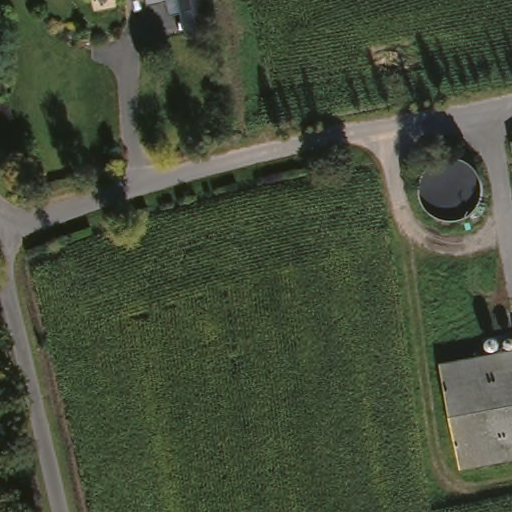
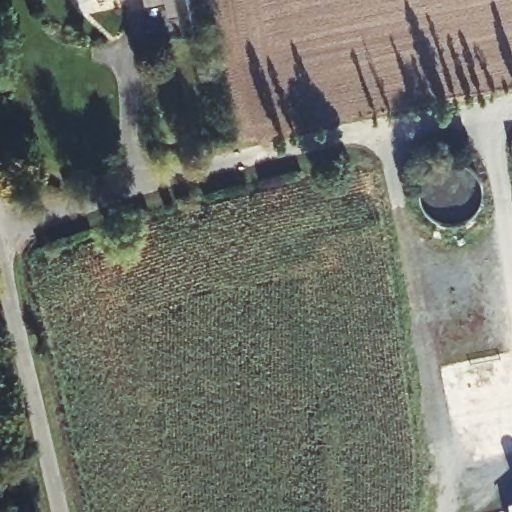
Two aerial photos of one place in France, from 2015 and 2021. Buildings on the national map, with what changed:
unchanged [(182,35),(179,15),(167,17),(164,1),(147,5),(146,0),(202,0),(207,31),(182,35)]
unchanged [(512,149),(512,168),(508,150),(512,149)]
demolished [(512,332),(512,345),(509,333),(512,332)]
demolished [(437,370),(512,354),(512,461),(460,472),(437,370)]

